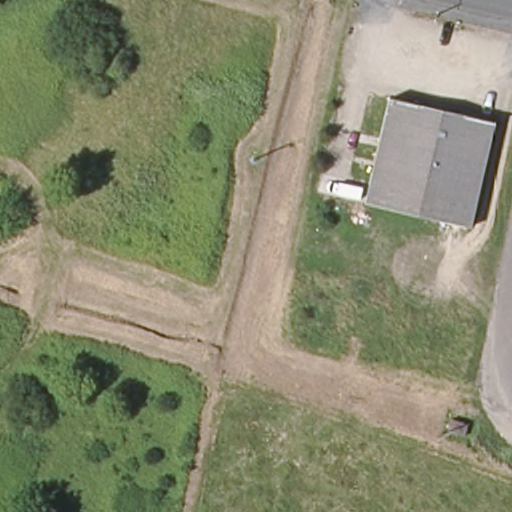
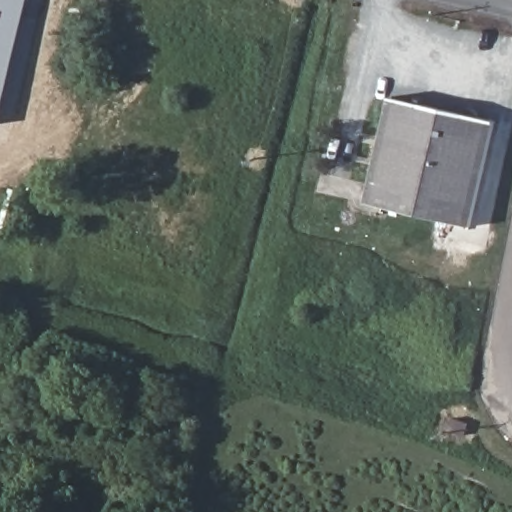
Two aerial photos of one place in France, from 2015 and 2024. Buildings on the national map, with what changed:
new [(0,113),(0,0),(27,0),(0,113)]
unchanged [(468,230),(365,200),(395,97),(500,127),(468,230)]

